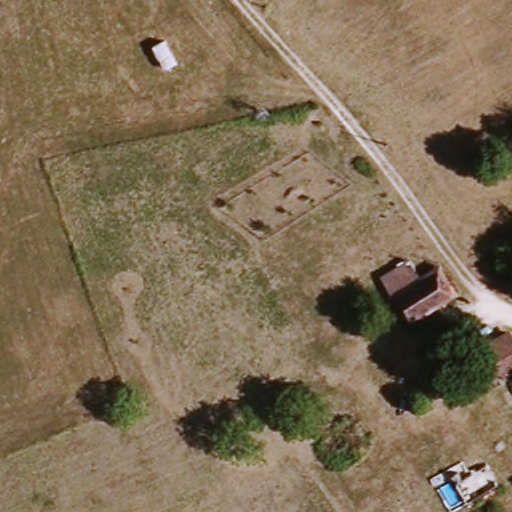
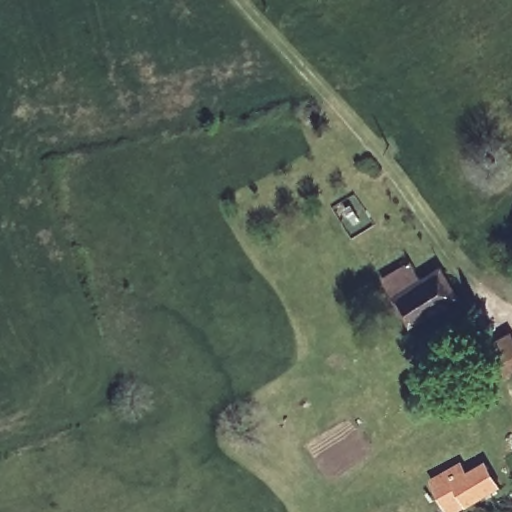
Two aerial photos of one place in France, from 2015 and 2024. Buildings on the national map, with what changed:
unchanged [(406,324),(376,275),(404,255),(420,275),(435,268),(452,295),(440,302),(406,324)]
unchanged [(475,354),(512,333),(512,365),(490,378),(475,354)]
new [(469,472),(487,461),(502,487),(467,508),(460,512),(449,512),(430,479),(463,462),(469,472)]

